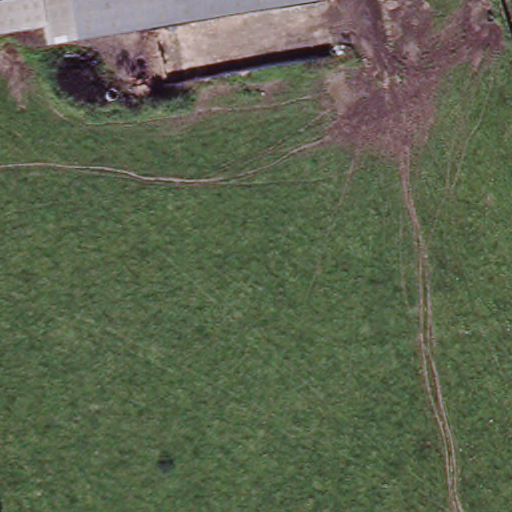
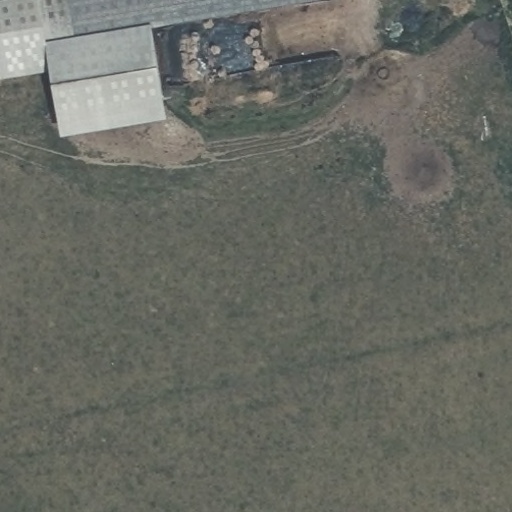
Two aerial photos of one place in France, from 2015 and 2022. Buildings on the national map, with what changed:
unchanged [(50,41),(45,27),(0,33),(0,0),(71,0),(77,39),(50,41)]
unchanged [(308,0),(77,39),(71,0),(308,0)]
new [(50,41),(77,39),(152,26),(168,118),(62,134),(51,68),(0,78),(0,33),(45,27),(50,41)]

